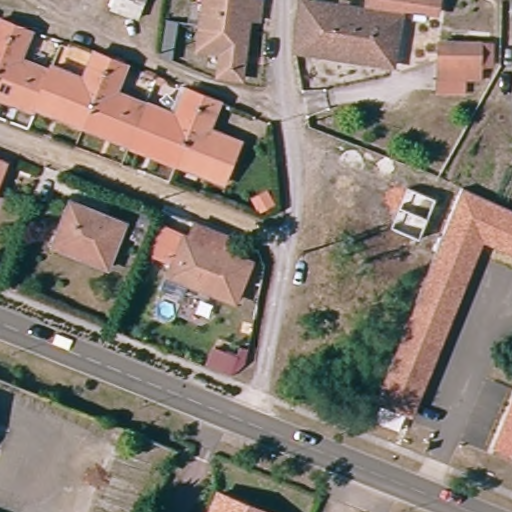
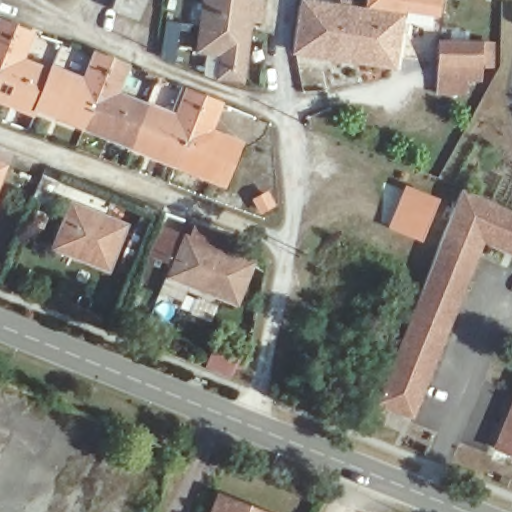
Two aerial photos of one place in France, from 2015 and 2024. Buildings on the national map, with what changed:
unchanged [(135,9),(115,1),(115,0),(145,0),(136,24),(129,21),(135,9)]
unchanged [(239,80),(216,77),(219,54),(196,51),(202,0),(260,0),(257,16),(257,21),(247,20),(239,80)]
unchanged [(400,11),(391,67),(293,52),(301,2),(364,12),(366,0),(438,0),(435,17),(400,11)]
unchanged [(175,56),(165,55),(170,18),(180,19),(175,56)]
unchanged [(29,35),(18,62),(48,73),(34,109),(32,114),(14,107),(0,101),(0,23),(29,35)]
unchanged [(488,67),(477,66),(477,80),(461,79),(461,95),(436,94),(437,42),(490,45),(488,67)]
unchanged [(111,140),(51,116),(34,109),(48,73),(50,68),(81,80),(91,55),(125,69),(115,94),(175,117),(185,92),(217,105),(207,132),(237,144),(222,184),(205,177),(145,153),(111,140)]
unchanged [(2,167),(0,172),(0,166),(2,167)]
new [(438,197),(422,240),(390,226),(406,185),(438,197)]
unchanged [(277,202),(262,209),(255,195),(270,187),(277,202)]
unchanged [(512,211),(512,258),(482,247),(443,232),(461,190),(512,211)]
unchanged [(61,222),(68,205),(122,227),(105,271),(83,262),(50,249),(61,222)]
unchanged [(182,254),(187,238),(194,240),(199,227),(229,240),(224,252),(253,264),(238,302),(200,287),(172,277),(182,254)]
unchanged [(413,417),(376,402),(443,232),(482,247),(413,417)]
unchanged [(512,398),(512,460),(492,452),(512,398)]
unchanged [(222,491),(274,512),(214,512),(222,491)]

